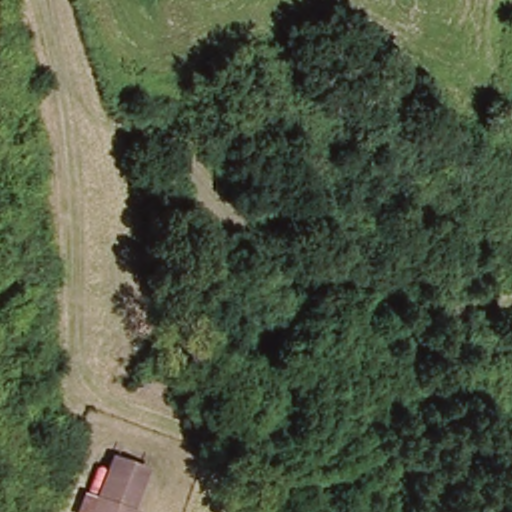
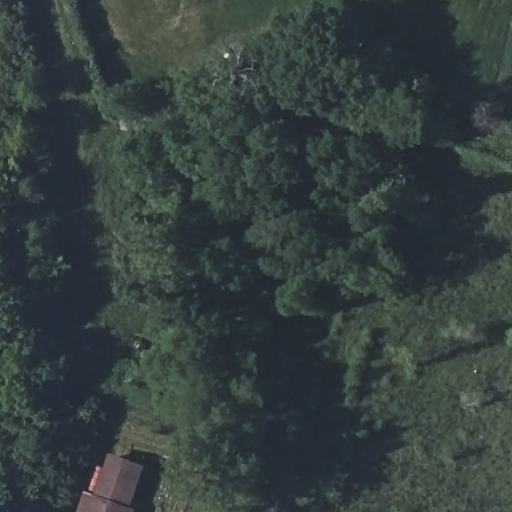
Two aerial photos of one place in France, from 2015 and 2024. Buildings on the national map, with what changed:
unchanged [(100,490),(112,458),(127,464),(142,470),(145,471),(143,475),(132,499),(131,503),(121,499),(100,490)]
unchanged [(121,499),(131,503),(134,504),(140,507),(137,512),(91,512),(100,490),(121,499)]

